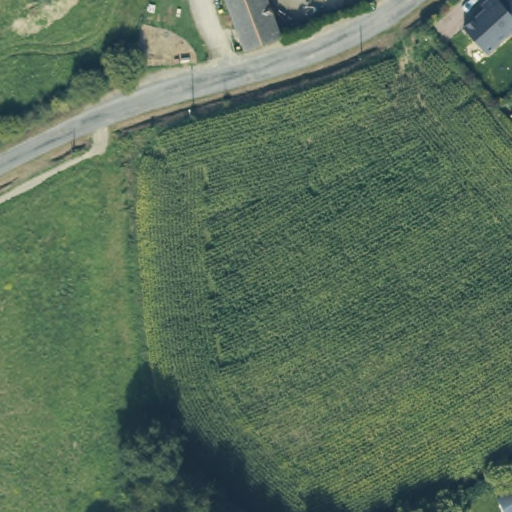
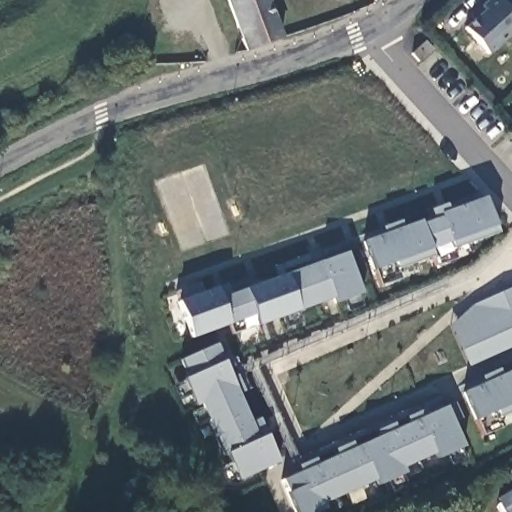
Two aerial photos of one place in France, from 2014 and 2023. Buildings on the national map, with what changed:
unchanged [(225,0),(264,0),(279,40),(244,52),(225,0)]
unchanged [(373,3),(370,0),(376,0),(373,3)]
unchanged [(485,12),(481,8),(491,0),(497,0),(500,3),(505,0),(512,0),(512,35),(487,57),(464,30),(485,12)]
new [(495,226),(496,232),(453,248),(457,257),(435,265),(431,256),(398,269),(400,278),(380,284),(376,269),(373,270),(363,240),(382,234),(380,227),(400,220),(403,226),(419,220),(421,223),(432,219),(428,210),(445,204),(448,210),(484,197),(495,226)]
new [(347,311),(345,300),(335,304),(334,299),(258,326),(258,324),(232,333),(230,324),(191,338),(177,301),(181,300),(176,291),(200,282),(206,290),(224,284),(229,294),(320,262),(347,252),(362,294),(359,295),(361,306),(347,311)]
new [(469,366),(449,325),(471,305),(512,287),(512,347),(469,366)]
new [(215,344),(219,352),(224,349),(231,365),(226,369),(230,378),(235,375),(242,391),(238,395),(251,423),(258,418),(266,435),(277,462),(237,481),(227,456),(223,457),(200,405),(194,407),(181,379),(188,376),(178,360),(215,344)]
new [(483,382),(479,377),(497,368),(501,374),(512,369),(512,411),(500,416),(503,426),(483,434),(477,419),(475,421),(463,391),(483,382)]
new [(464,446),(437,458),(435,454),(402,468),(405,473),(378,485),(375,481),(324,503),(326,508),(319,512),(295,512),(281,480),(299,472),(296,466),(315,458),(317,463),(336,455),(333,450),(352,441),(354,446),(360,444),(378,436),(375,431),(393,423),(396,428),(407,423),(404,418),(424,408),(428,413),(446,406),(455,403),(461,417),(453,421),(464,446)]
unchanged [(505,512),(497,496),(512,488),(512,512),(505,512)]

